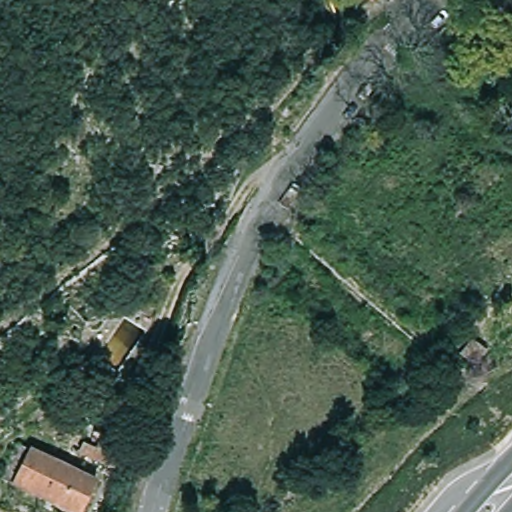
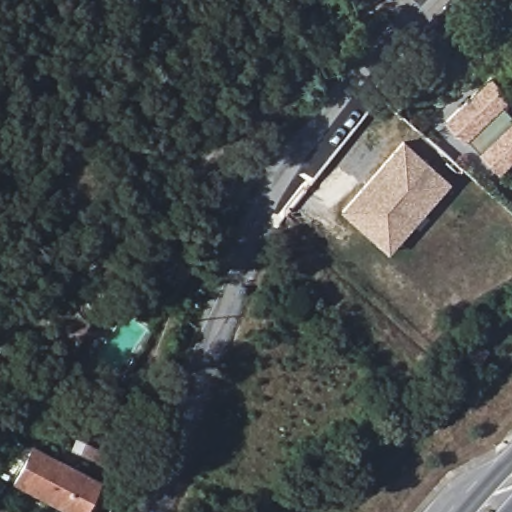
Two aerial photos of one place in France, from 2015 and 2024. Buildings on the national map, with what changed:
new [(494,80),(512,99),(512,100),(504,108),(512,117),(512,164),(506,169),(474,135),(465,143),(448,123),(494,80)]
new [(344,210),(407,143),(451,185),(423,215),(409,202),(374,239),(344,210)]
new [(388,252),(374,239),(409,202),(423,215),(388,252)]
unchanged [(113,480),(101,512),(53,512),(7,486),(21,442),(113,480)]

